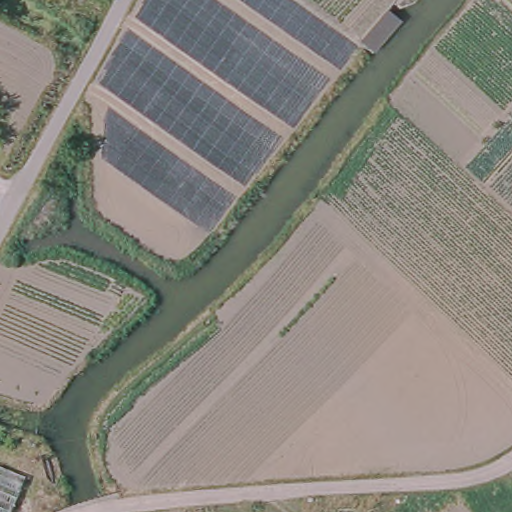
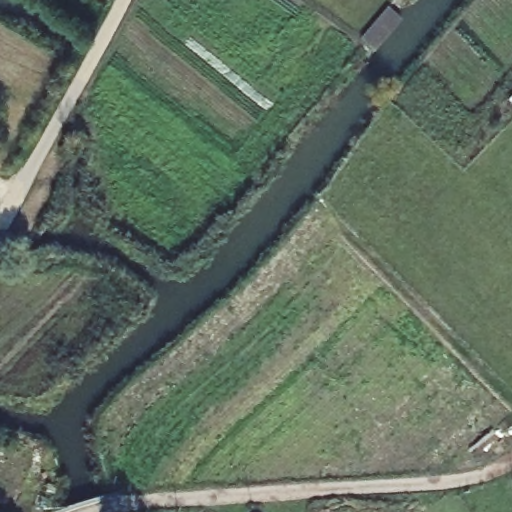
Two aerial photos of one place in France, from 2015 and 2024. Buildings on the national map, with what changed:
demolished [(16,512),(0,512),(0,471),(27,483),(16,512)]

